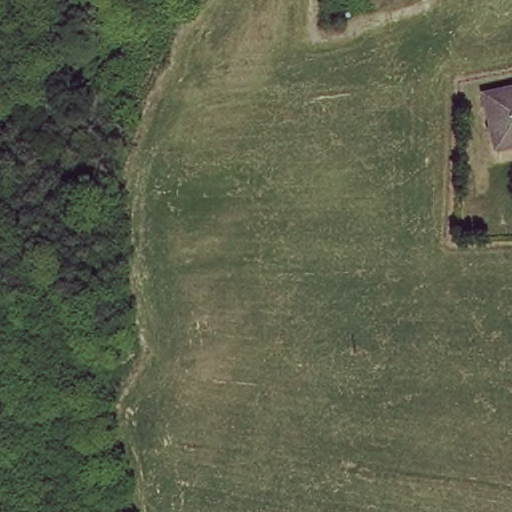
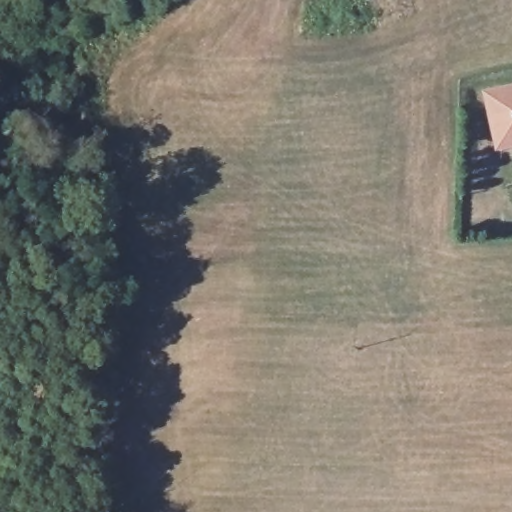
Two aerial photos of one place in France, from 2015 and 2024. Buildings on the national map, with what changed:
unchanged [(484,86),(512,82),(512,147),(497,149),(484,86)]

